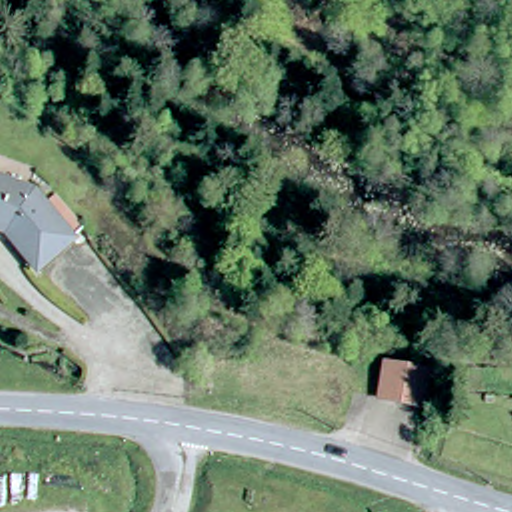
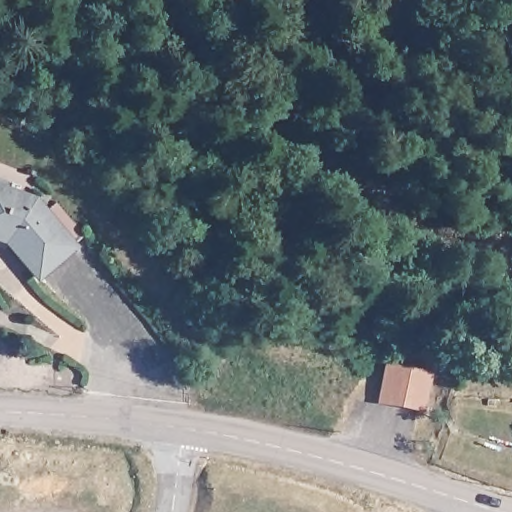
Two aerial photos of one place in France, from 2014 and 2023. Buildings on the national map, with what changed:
unchanged [(47,207),(74,239),(27,281),(0,250),(0,199),(20,205),(35,217),(47,207)]
unchanged [(383,364),(436,375),(429,414),(376,405),(383,364)]

